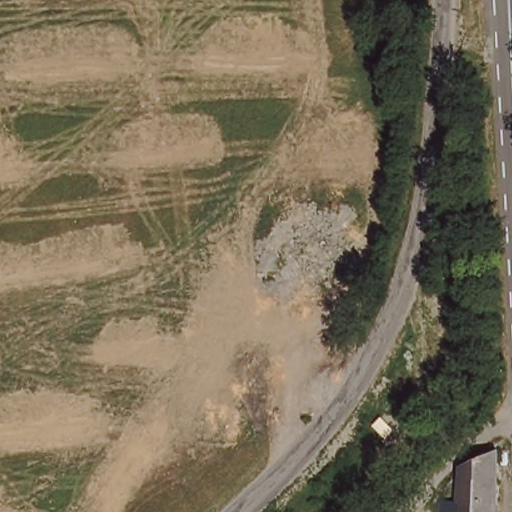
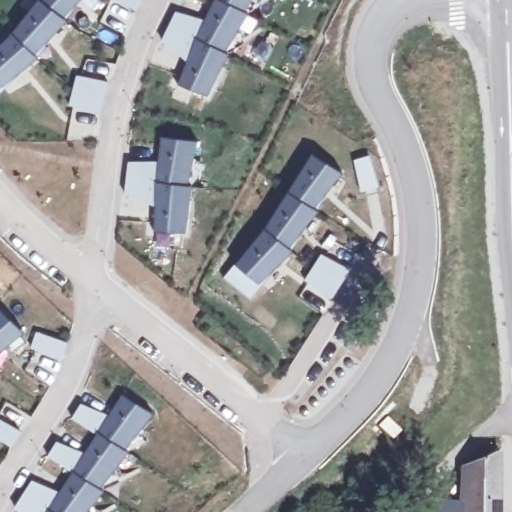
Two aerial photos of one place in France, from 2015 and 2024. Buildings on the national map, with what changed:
new [(66,20),(33,54),(38,59),(1,86),(0,88),(0,46),(14,32),(39,0),(79,0),(61,17),(66,20)]
new [(124,0),(142,0),(139,8),(124,0)]
new [(187,59),(162,39),(176,11),(204,18),(213,0),(249,0),(241,12),(247,15),(223,51),(228,53),(205,96),(178,85),(187,59)]
new [(104,113),(73,104),(80,75),(112,80),(104,113)]
new [(154,233),(155,205),(127,192),(128,162),(158,160),(161,136),(194,139),(189,185),(186,234),(154,233)]
new [(312,207),(318,210),(286,247),(293,254),(261,283),(250,298),(226,278),(237,265),(265,230),(314,152),(341,172),(312,207)]
new [(357,161),(372,156),(382,187),(365,193),(357,161)]
new [(324,255),(353,271),(335,300),(309,281),(324,255)]
new [(0,350),(0,308),(24,332),(0,350)]
new [(38,334),(68,344),(63,361),(33,348),(38,334)]
new [(123,449),(128,452),(97,488),(103,492),(86,512),(21,512),(16,507),(32,480),(58,490),(72,470),(48,456),(57,441),(83,451),(96,431),(74,416),(81,402),(109,412),(123,392),(153,412),(123,449)]
new [(21,430),(12,445),(0,438),(0,420),(21,430)]
unchanged [(438,503),(454,505),(456,492),(445,492),(446,483),(447,482),(498,450),(493,512),(437,512),(438,503)]

